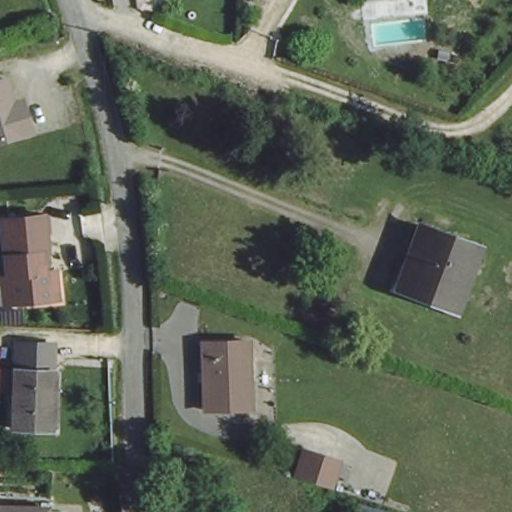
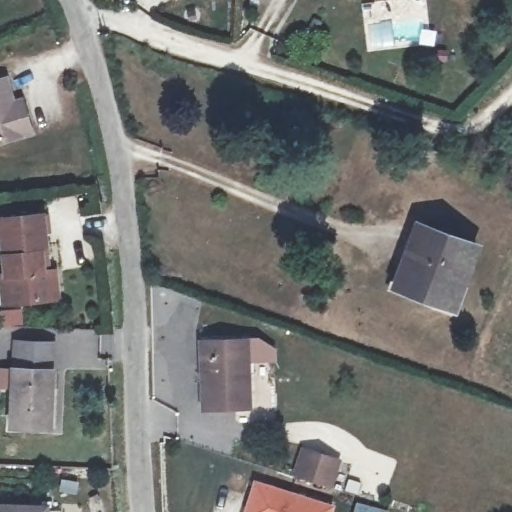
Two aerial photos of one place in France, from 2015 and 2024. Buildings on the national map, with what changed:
unchanged [(0,79),(4,78),(12,103),(20,101),(24,114),(30,133),(0,141),(0,79)]
unchanged [(0,270),(4,270),(0,235),(0,214),(40,210),(43,248),(39,248),(40,267),(52,266),(55,294),(13,298),(1,299),(0,291),(0,270)]
unchanged [(453,315),(389,290),(409,230),(474,255),(453,315)]
unchanged [(248,406),(204,406),(200,343),(245,341),(248,406)]
unchanged [(42,423),(1,421),(0,364),(42,365),(42,423)]
unchanged [(294,471),(302,445),(337,456),(329,482),(294,471)]
new [(331,507),(329,512),(246,512),(256,483),(331,507)]
unchanged [(0,512),(0,500),(41,500),(41,512),(0,512)]

